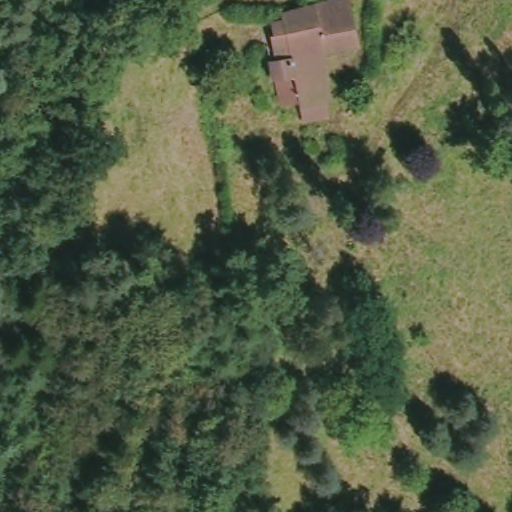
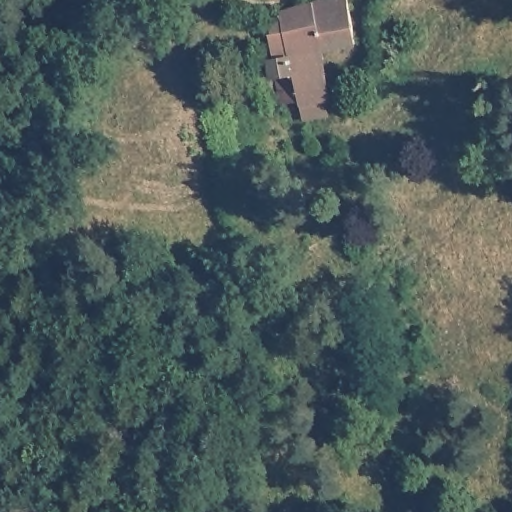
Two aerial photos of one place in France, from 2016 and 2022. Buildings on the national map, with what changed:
unchanged [(304,0),(349,0),(354,42),(319,50),(326,109),(301,112),(281,6),(304,0)]

